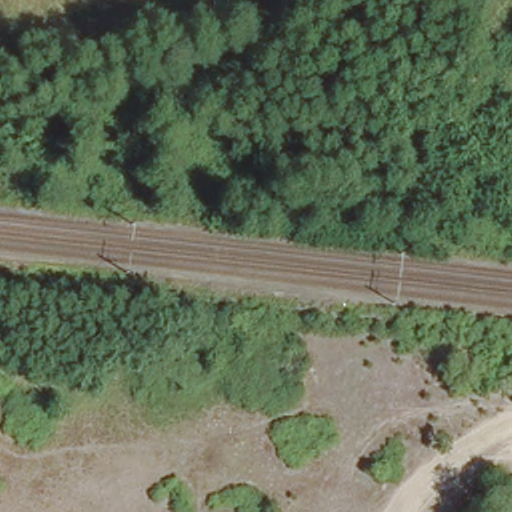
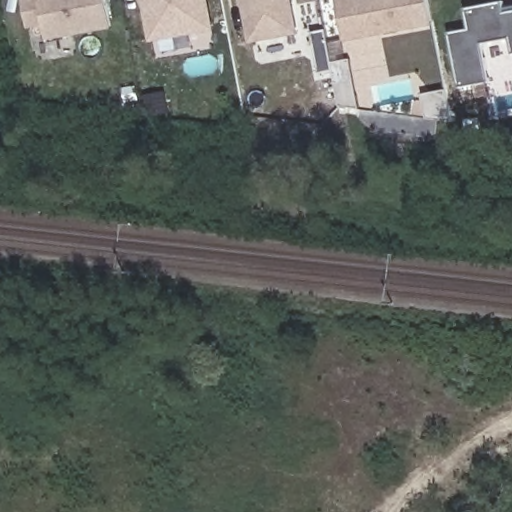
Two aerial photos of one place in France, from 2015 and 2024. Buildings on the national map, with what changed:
new [(113,28),(47,40),(44,26),(27,29),(22,0),(108,0),(113,28)]
new [(215,31),(149,42),(141,0),(209,0),(215,31)]
new [(300,35),(249,44),(241,0),(293,0),(300,35)]
new [(433,25),(343,41),(336,0),(428,0),(433,25)]
new [(470,29),(467,8),(504,2),(506,12),(512,11),(512,48),(511,39),(483,43),(491,82),(460,87),(449,33),(470,29)]
new [(351,58),(361,109),(340,106),(334,71),(318,74),(312,32),(327,29),(333,61),(351,58)]
new [(422,117),(420,95),(446,91),(448,120),(422,117)]

